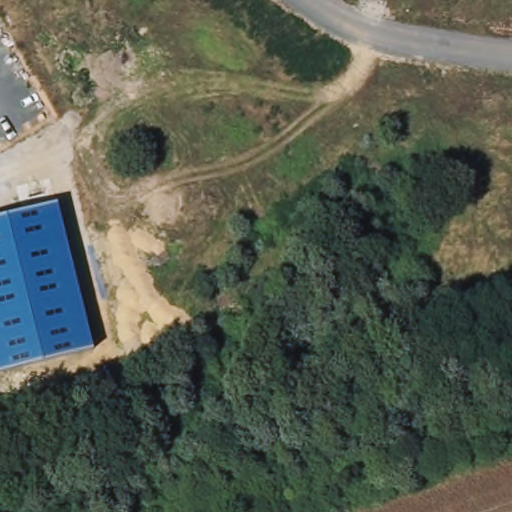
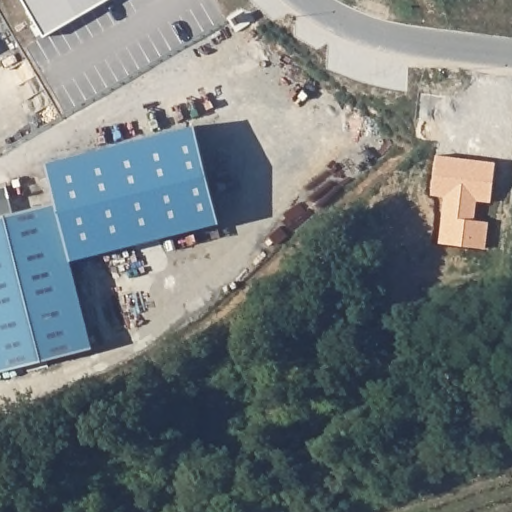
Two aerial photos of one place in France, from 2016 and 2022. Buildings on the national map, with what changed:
new [(22,0),(108,0),(44,37),(22,0)]
new [(57,201),(47,164),(194,127),(219,223),(72,258),(57,201)]
unchanged [(95,347),(0,372),(0,215),(57,201),(95,347)]

